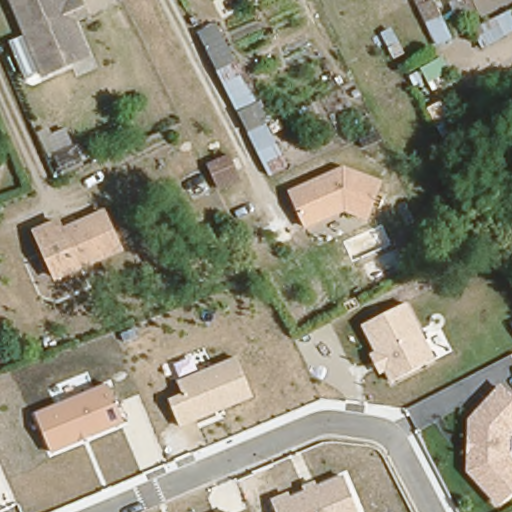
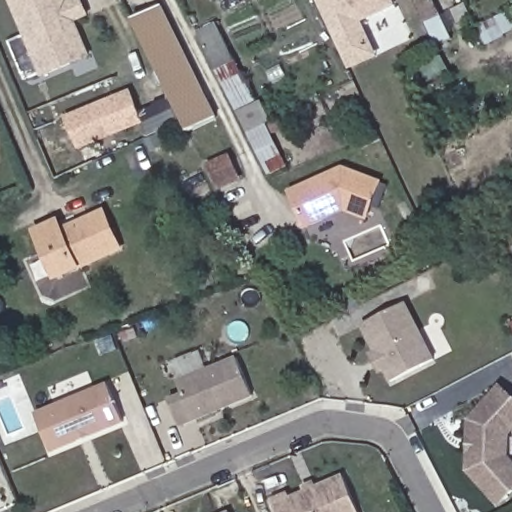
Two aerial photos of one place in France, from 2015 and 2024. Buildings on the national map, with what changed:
unchanged [(62,60),(33,71),(4,0),(73,0),(77,10),(64,15),(75,42),(79,52),(61,59),(62,60)]
new [(380,57),(351,71),(318,0),(395,0),(398,6),(365,23),(380,57)]
unchanged [(436,46),(415,0),(437,0),(453,38),(436,46)]
new [(136,19),(162,6),(215,117),(188,130),(136,19)]
unchanged [(512,7),(512,34),(499,41),(487,21),(512,7)]
unchanged [(255,98),(236,109),(197,29),(217,22),(255,98)]
new [(127,89),(140,120),(75,144),(62,114),(127,89)]
unchanged [(255,98),(261,94),(273,120),(267,123),(288,168),(268,176),(236,109),(255,98)]
unchanged [(222,192),(220,187),(212,169),(235,158),(243,176),(245,182),(222,192)]
unchanged [(330,213),(327,214),(305,225),(288,191),(318,176),(342,164),(380,176),(367,213),(345,205),(335,210),(330,213)]
unchanged [(111,246),(47,276),(26,231),(48,221),(52,230),(94,210),(111,246)]
new [(511,250),(512,249),(512,251),(511,250)]
unchanged [(363,324),(410,300),(438,359),(391,382),(363,324)]
unchanged [(240,355),(256,398),(181,426),(169,399),(184,393),(179,378),(240,355)]
unchanged [(512,392),(512,445),(512,454),(512,455),(512,495),(500,507),(467,470),(471,417),(500,382),(512,392)]
unchanged [(125,421),(52,451),(36,413),(109,384),(125,421)]
unchanged [(272,498),(285,494),(288,498),(303,492),(302,486),(317,481),(321,485),(346,475),(361,512),(278,512),(272,498)]
unchanged [(232,510),(233,512),(227,512),(232,510)]

